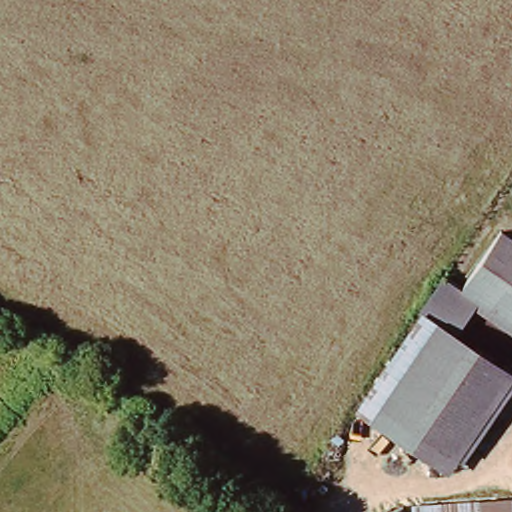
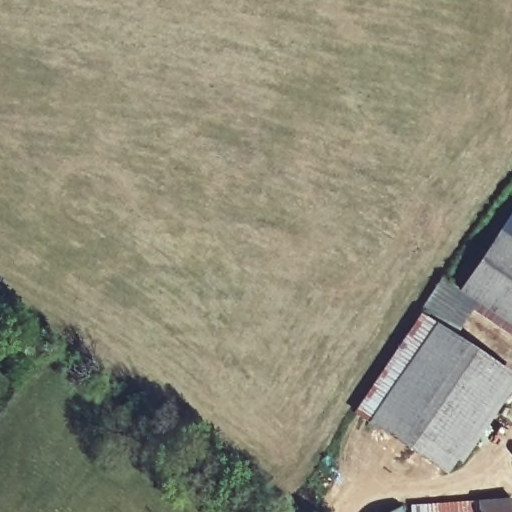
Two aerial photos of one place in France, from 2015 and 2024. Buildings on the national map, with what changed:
unchanged [(464,291),(504,204),(512,210),(512,322),(480,301),(464,291)]
unchanged [(480,301),(457,339),(437,327),(423,318),(447,280),(464,291),(480,301)]
unchanged [(512,374),(444,472),(372,423),(437,327),(457,339),(512,374)]
unchanged [(512,512),(427,512),(427,510),(512,501),(512,507),(512,512)]
unchanged [(405,512),(397,512),(403,509),(405,512)]

